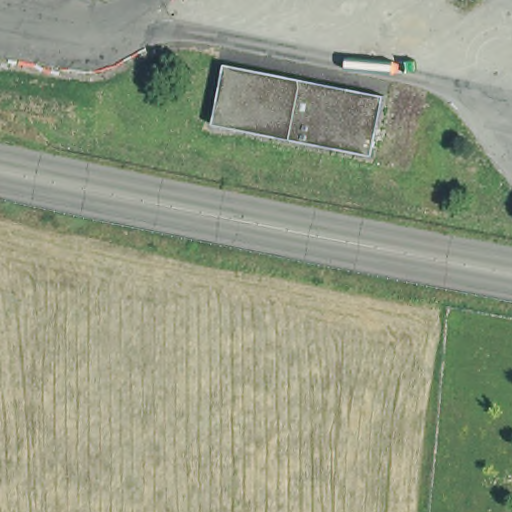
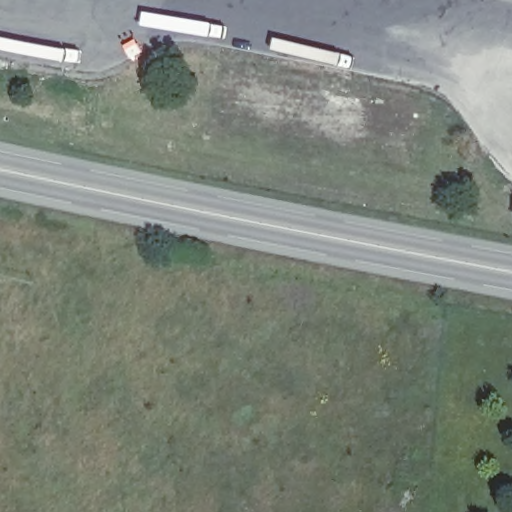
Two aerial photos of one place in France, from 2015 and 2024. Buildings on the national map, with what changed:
demolished [(377,157),(218,126),(230,65),(389,96),(377,157)]

